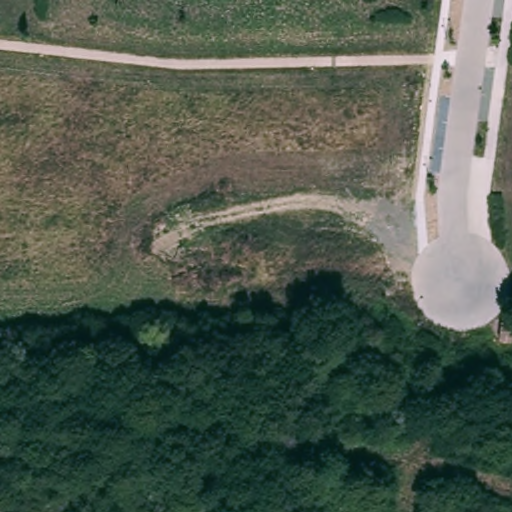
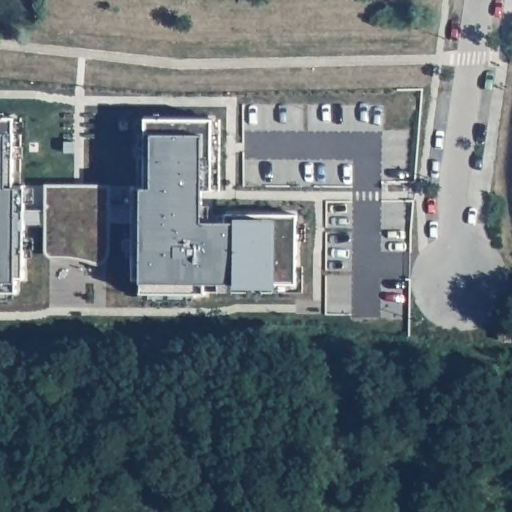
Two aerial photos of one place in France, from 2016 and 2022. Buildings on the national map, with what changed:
new [(15,187),(24,187),(25,209),(45,209),(44,184),(110,184),(111,205),(135,206),(135,187),(141,187),(145,187),(145,119),(212,119),(220,119),(220,190),(212,190),(202,189),(203,221),(228,221),(228,214),(296,215),(295,266),(303,266),(303,290),(204,291),(141,292),(141,282),(141,280),(133,280),(134,222),(110,222),(109,250),(108,259),(105,262),(99,265),(90,263),(76,258),(53,257),(49,256),(46,251),(46,222),(25,220),(24,276),(15,277),(15,280),(16,291),(0,291),(0,117),(14,117),(15,187)]

